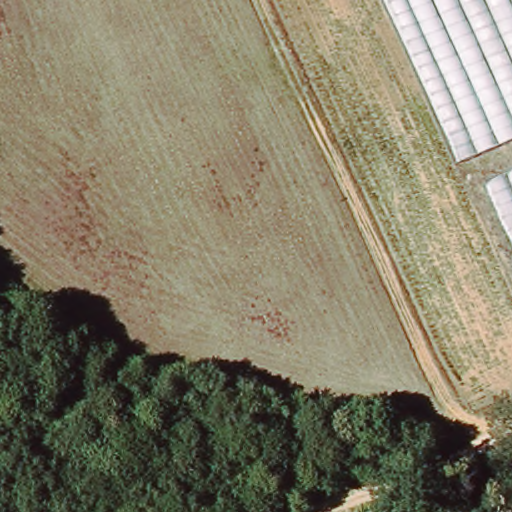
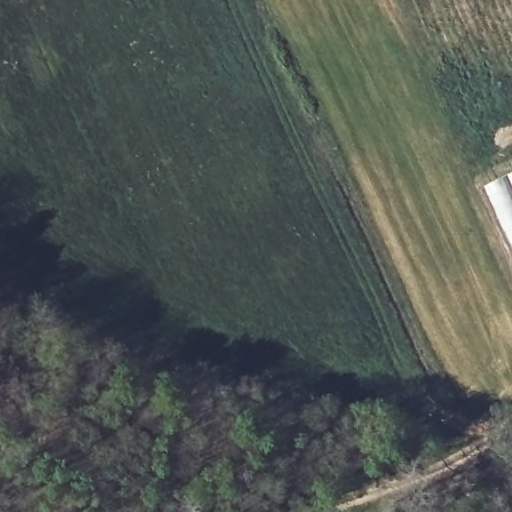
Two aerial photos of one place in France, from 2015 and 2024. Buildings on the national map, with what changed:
demolished [(459,160),(390,10),(386,0),(512,0),(512,137),(459,160)]
new [(512,171),(512,249),(483,185),(512,171)]

